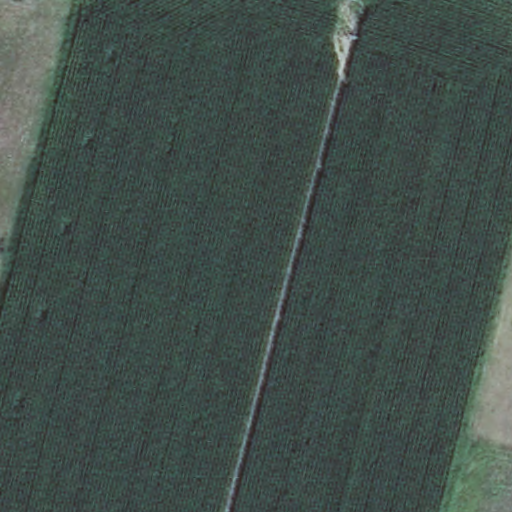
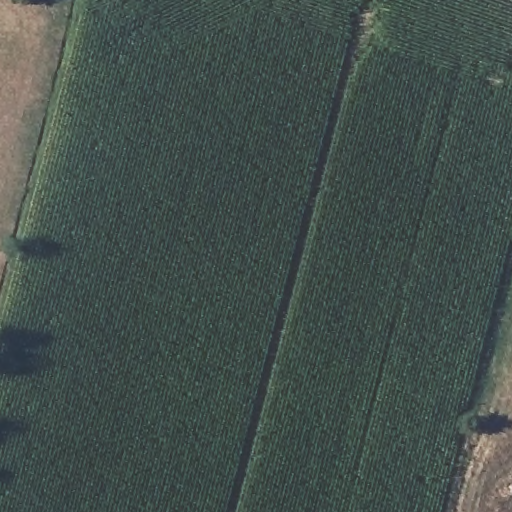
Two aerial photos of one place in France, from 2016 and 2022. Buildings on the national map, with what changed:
[]

